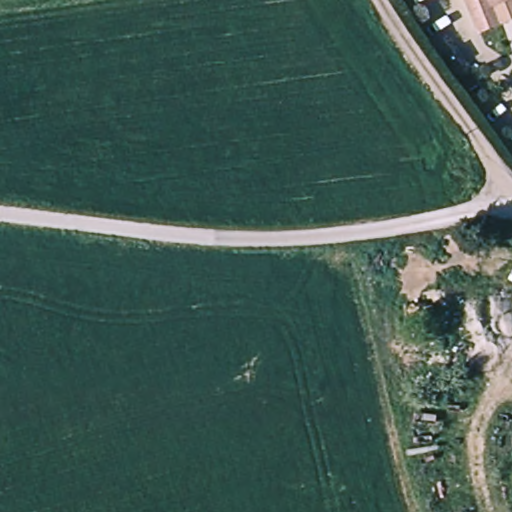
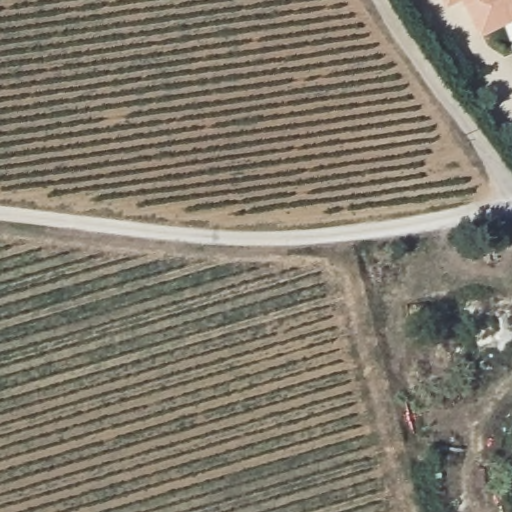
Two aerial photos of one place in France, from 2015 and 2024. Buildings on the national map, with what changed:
unchanged [(470,0),(512,0),(512,19),(481,31),(470,0)]

